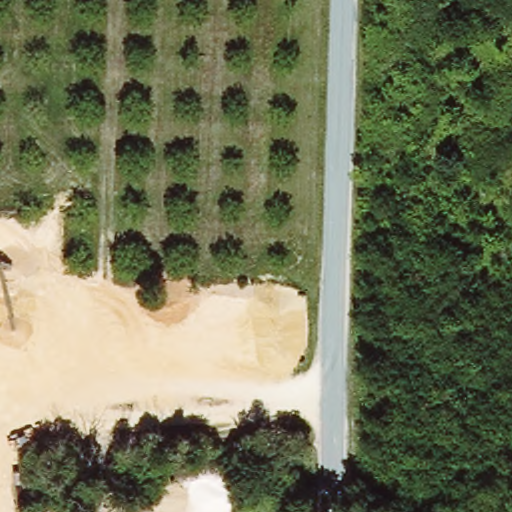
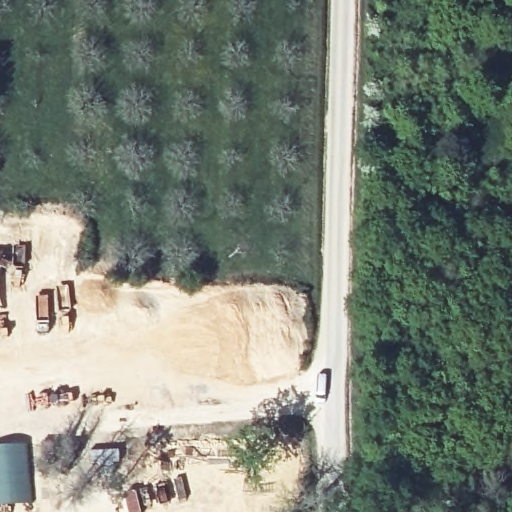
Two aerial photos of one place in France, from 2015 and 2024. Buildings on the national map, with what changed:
new [(27,443),(32,503),(0,505),(0,446),(27,443)]

